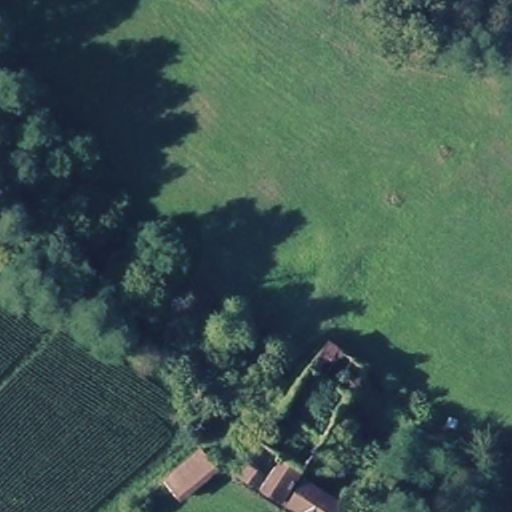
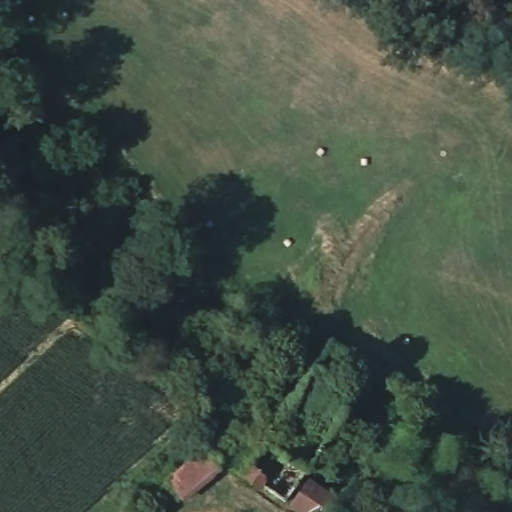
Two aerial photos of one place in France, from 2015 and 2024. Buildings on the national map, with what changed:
unchanged [(263,448),(304,478),(351,512),(286,512),(240,479),(263,448)]
unchanged [(206,452),(221,472),(185,502),(169,484),(206,452)]

